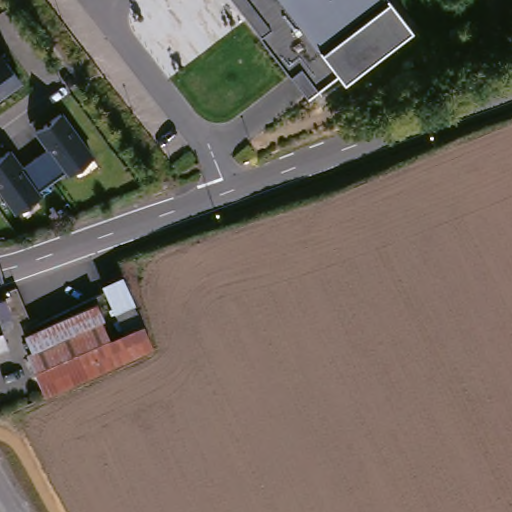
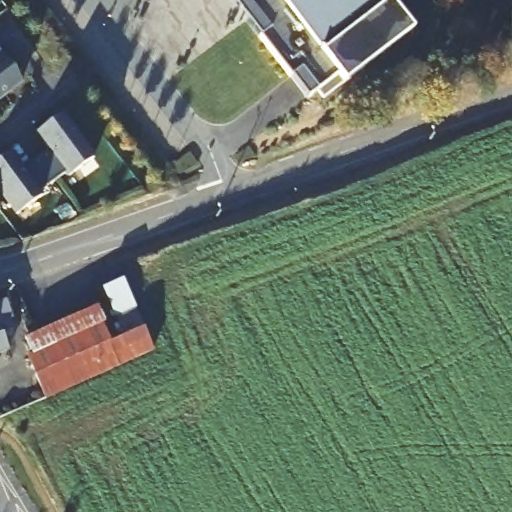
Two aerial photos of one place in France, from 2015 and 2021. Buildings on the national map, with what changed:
unchanged [(338,83),(333,76),(304,100),(230,0),(385,0),(408,30),(338,83)]
unchanged [(21,83),(0,99),(0,58),(1,57),(21,83)]
unchanged [(68,177),(56,160),(29,180),(41,197),(17,215),(0,192),(0,159),(9,153),(11,157),(39,137),(36,133),(61,116),(93,160),(68,177)]
unchanged [(90,309),(103,345),(119,336),(97,291),(119,281),(133,312),(137,330),(144,351),(41,400),(19,361),(27,357),(21,341),(90,309)]
unchanged [(0,321),(1,324),(9,321),(12,331),(3,334),(9,351),(0,354),(0,321)]

